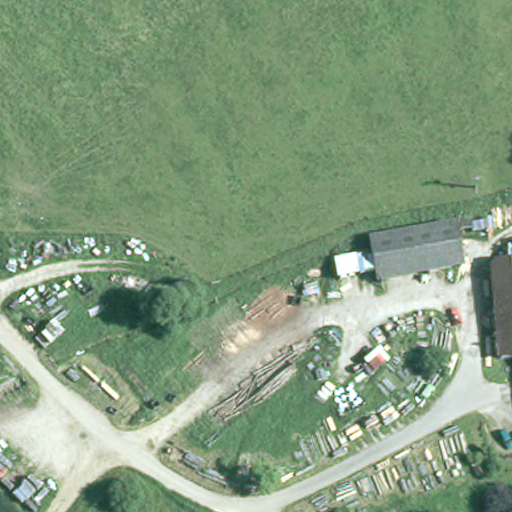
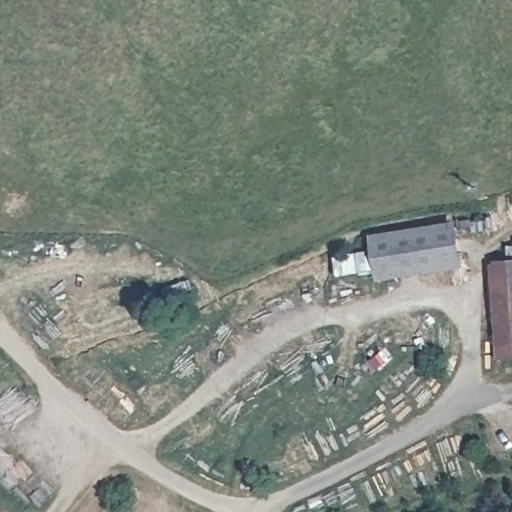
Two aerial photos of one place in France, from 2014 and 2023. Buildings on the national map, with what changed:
unchanged [(445,219),(457,256),(382,281),(367,245),(445,219)]
unchanged [(512,255),(512,268),(508,257),(512,255)]
unchanged [(501,369),(480,279),(512,271),(512,366),(503,368),(501,369)]

